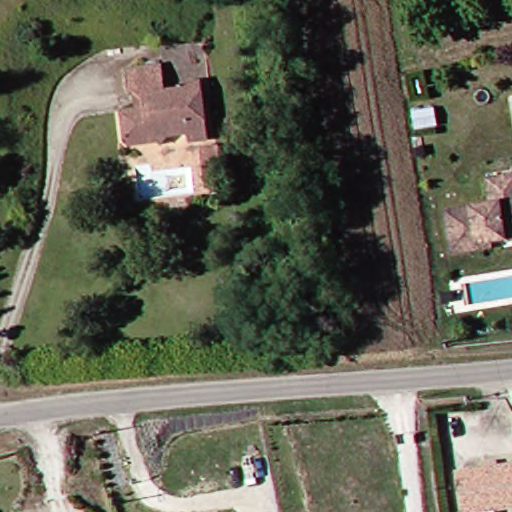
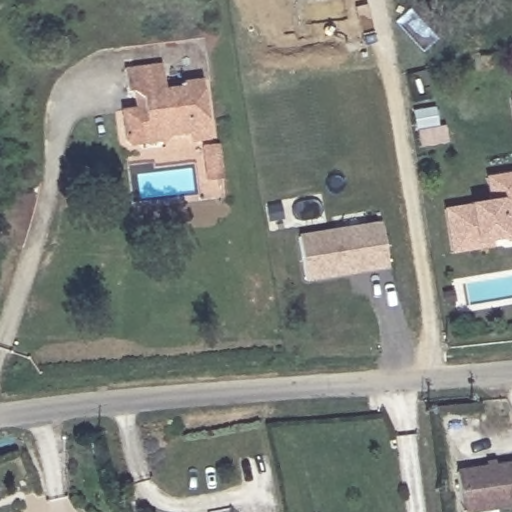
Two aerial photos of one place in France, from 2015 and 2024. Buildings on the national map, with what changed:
unchanged [(126,142),(125,116),(145,114),(132,95),(130,77),(130,73),(167,67),(168,73),(170,93),(187,91),(187,84),(207,82),(214,142),(192,145),(192,137),(178,137),(164,151),(135,152),(126,142)]
unchanged [(508,131),(505,102),(512,101),(512,130),(508,131)]
unchanged [(487,180),(512,176),(512,241),(509,241),(508,237),(492,239),(493,245),(451,251),(444,209),(490,200),(487,180)]
new [(339,232),(336,217),(370,212),(372,227),(385,224),(391,266),(312,279),(305,237),(339,232)]
unchanged [(499,512),(468,512),(468,510),(466,511),(460,468),(512,461),(512,505),(498,507),(499,512)]

